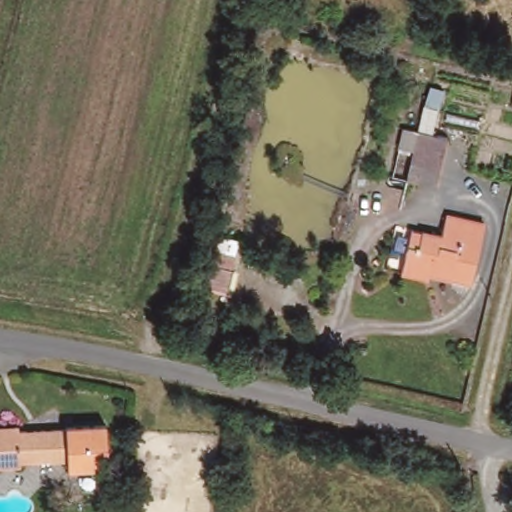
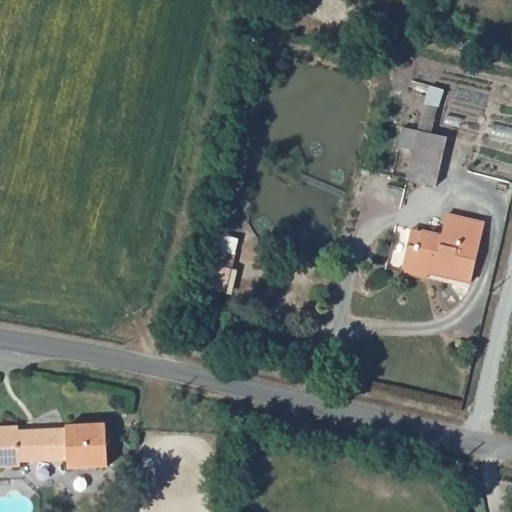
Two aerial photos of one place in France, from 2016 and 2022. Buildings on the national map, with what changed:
unchanged [(434,189),(404,183),(415,132),(426,87),(442,92),(431,135),(445,137),(434,189)]
unchanged [(448,212),(485,221),(470,283),(403,271),(409,241),(412,226),(425,229),(443,233),(448,212)]
unchanged [(20,432),(20,437),(65,438),(65,430),(94,431),(108,432),(106,477),(90,476),(69,476),(69,471),(22,467),(22,471),(0,470),(0,431),(20,432)]

